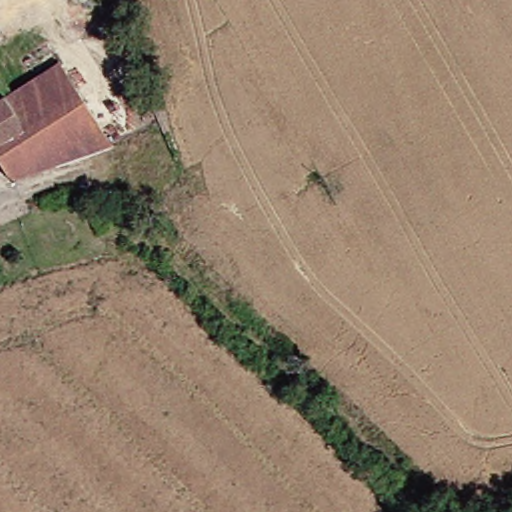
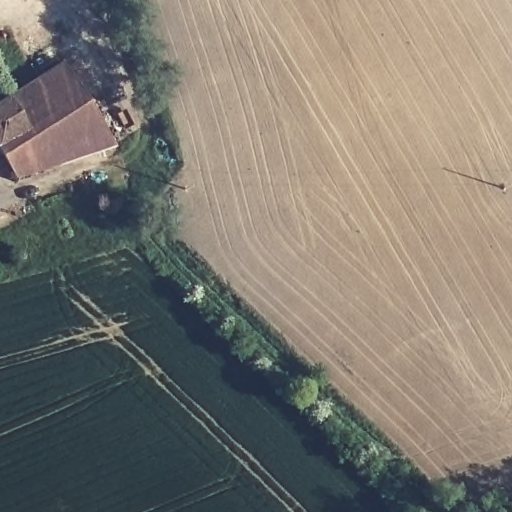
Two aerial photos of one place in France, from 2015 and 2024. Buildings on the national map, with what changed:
unchanged [(0,151),(0,102),(68,65),(122,146),(86,155),(50,165),(15,177),(0,151)]

